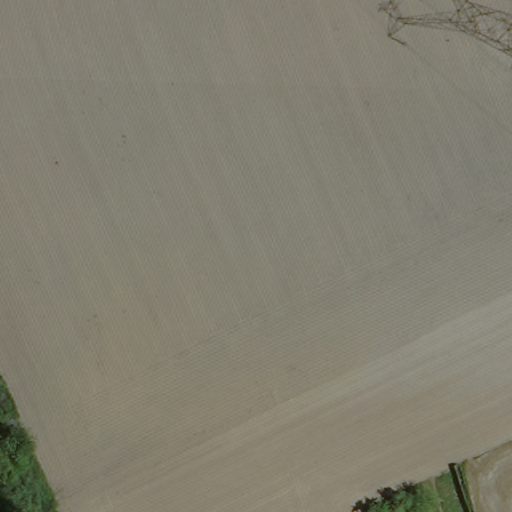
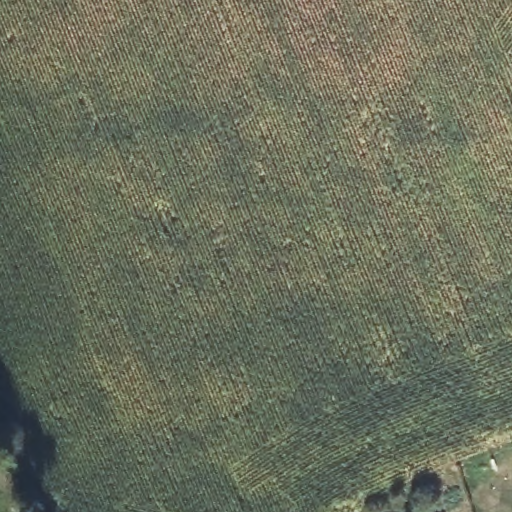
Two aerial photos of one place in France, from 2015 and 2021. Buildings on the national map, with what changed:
[]

